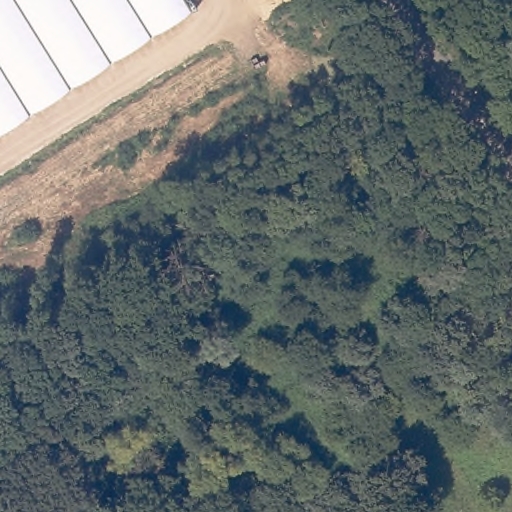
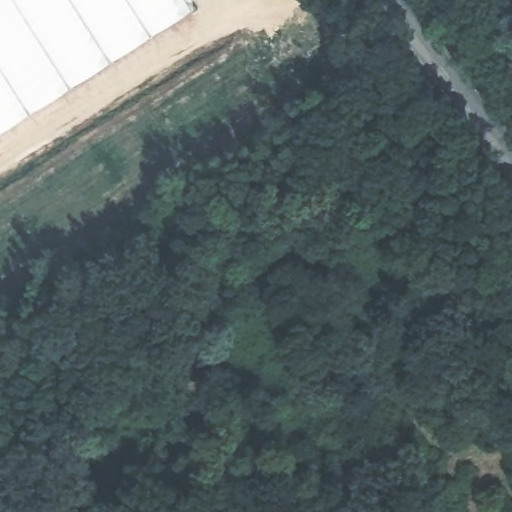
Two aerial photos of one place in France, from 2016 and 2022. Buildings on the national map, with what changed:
unchanged [(0,135),(0,0),(188,0),(195,11),(0,135)]

